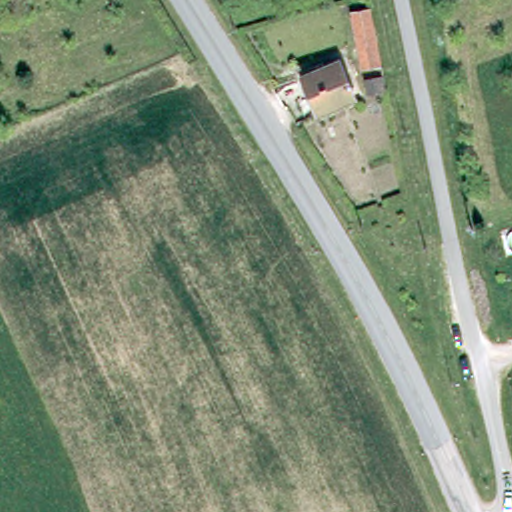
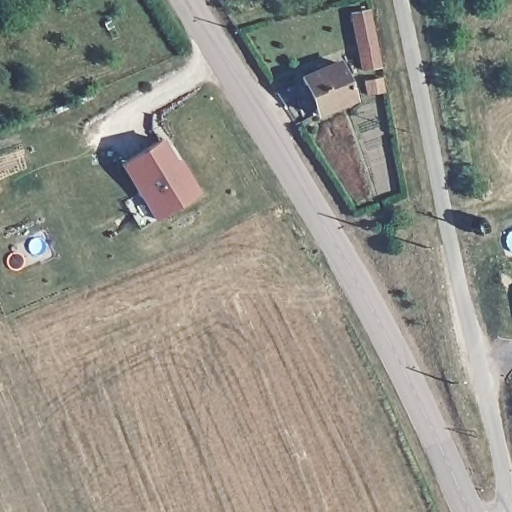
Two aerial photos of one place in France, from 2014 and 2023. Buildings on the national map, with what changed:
unchanged [(350,0),(367,0),(377,53),(361,56),(350,0)]
unchanged [(317,106),(304,69),(341,56),(355,93),(317,106)]
new [(367,79),(381,78),(382,93),(368,94),(367,79)]
new [(181,157),(202,190),(155,219),(120,164),(162,137),(176,160),(181,157)]

